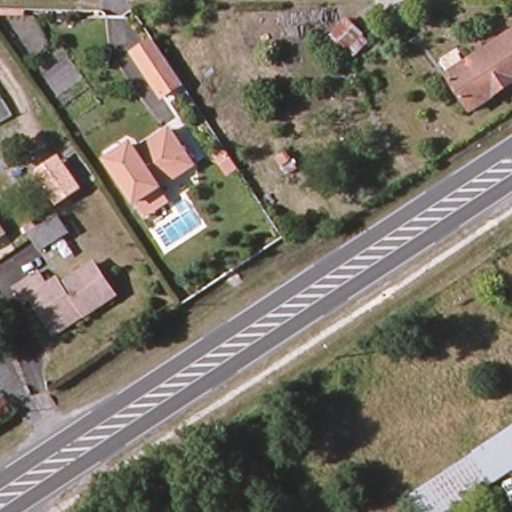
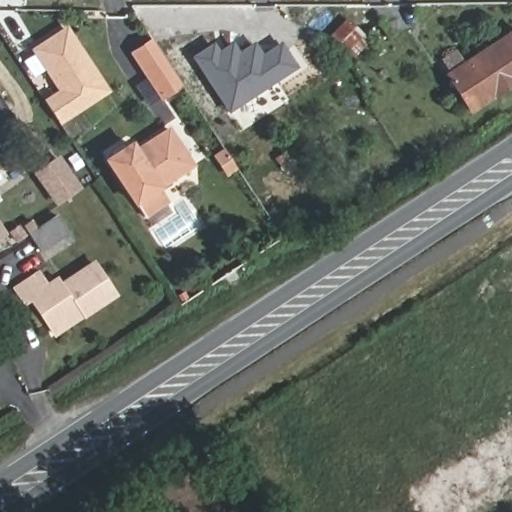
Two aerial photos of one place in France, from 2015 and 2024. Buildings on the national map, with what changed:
unchanged [(343,55),(327,40),(346,20),(361,35),(343,55)]
new [(68,24),(112,91),(60,125),(44,99),(57,90),(30,49),(68,24)]
unchanged [(470,112),(447,76),(512,33),(512,85),(470,112)]
unchanged [(128,46),(152,35),(181,90),(155,97),(128,46)]
new [(214,42),(220,50),(232,41),(240,50),(254,40),(262,52),(280,40),(297,67),(229,112),(192,56),(214,42)]
unchanged [(130,141),(135,148),(169,126),(191,161),(135,199),(107,156),(130,141)]
new [(64,155),(84,185),(63,200),(41,170),(64,155)]
unchanged [(57,217),(68,234),(41,251),(34,240),(25,227),(34,221),(39,229),(57,217)]
unchanged [(0,237),(0,229),(4,235),(0,237)]
unchanged [(30,298),(24,302),(15,289),(39,274),(46,286),(59,279),(62,284),(94,264),(115,296),(82,317),(79,312),(51,330),(30,298)]
unchanged [(422,512),(410,494),(512,428),(512,473),(452,512),(422,512)]

